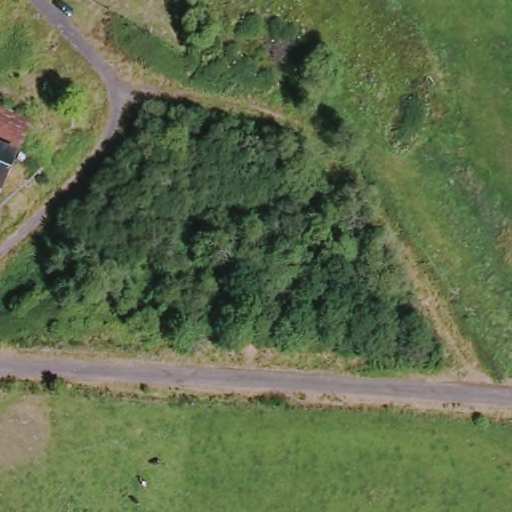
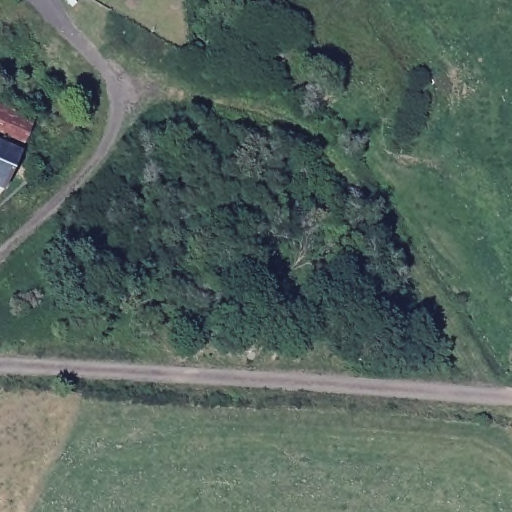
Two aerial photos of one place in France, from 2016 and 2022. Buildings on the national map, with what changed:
unchanged [(0,144),(0,110),(39,126),(28,153),(0,144)]
unchanged [(25,160),(7,196),(0,203),(0,149),(25,160)]

